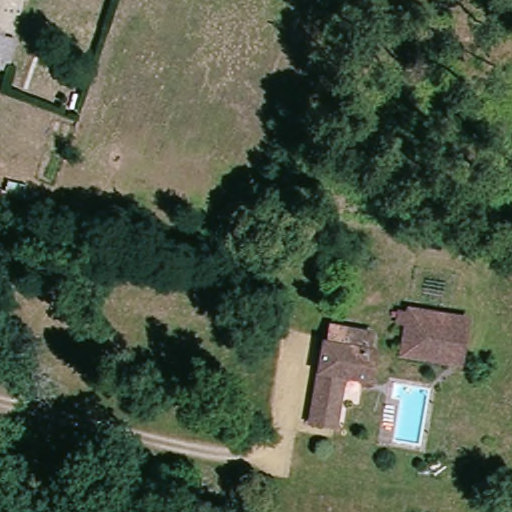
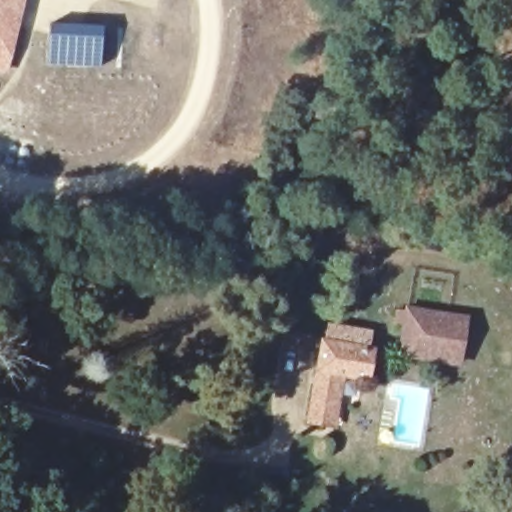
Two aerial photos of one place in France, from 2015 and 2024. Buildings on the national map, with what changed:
new [(0,29),(3,17),(0,17),(0,0),(21,0),(13,32),(0,29)]
unchanged [(0,29),(13,32),(5,67),(0,66),(0,17),(3,17),(0,29)]
new [(102,26),(101,66),(49,65),(49,22),(102,26)]
unchanged [(465,361),(408,350),(413,318),(398,315),(400,304),(415,307),(416,302),(474,313),(465,361)]
unchanged [(315,421),(320,394),(329,336),(351,340),(353,322),(374,325),(371,345),(381,346),(375,378),(350,374),(346,399),(342,426),(315,421)]

